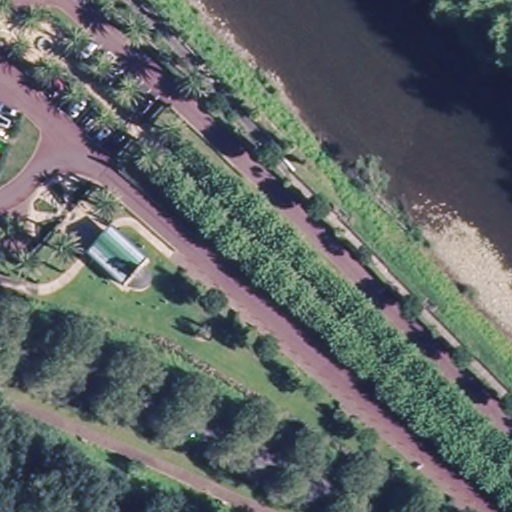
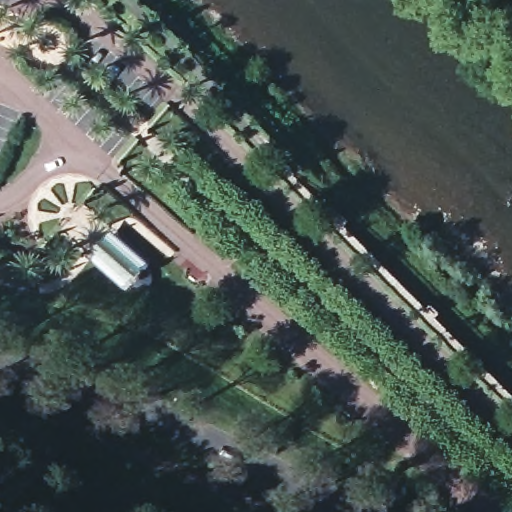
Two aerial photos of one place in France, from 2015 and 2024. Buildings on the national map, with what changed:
unchanged [(142,254),(140,257),(143,260),(145,262),(146,264),(147,266),(147,268),(147,271),(146,272),(145,274),(144,276),(143,277),(141,278),(139,278),(137,279),(135,280),(133,279),(132,278),(130,277),(128,277),(125,273),(122,276),(88,247),(108,224),(142,254)]

